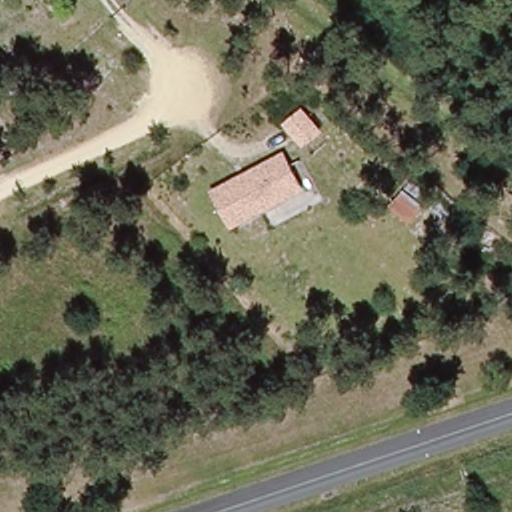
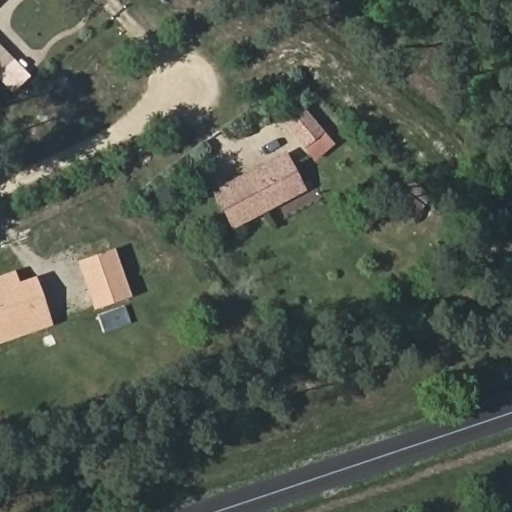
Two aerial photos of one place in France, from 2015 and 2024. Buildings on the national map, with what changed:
new [(11,94),(0,82),(0,45),(30,76),(11,94)]
unchanged [(211,191),(286,154),(305,193),(232,229),(211,191)]
new [(131,297),(92,311),(76,262),(114,249),(131,297)]
new [(15,271),(19,282),(35,276),(52,326),(0,344),(0,276),(15,271)]

